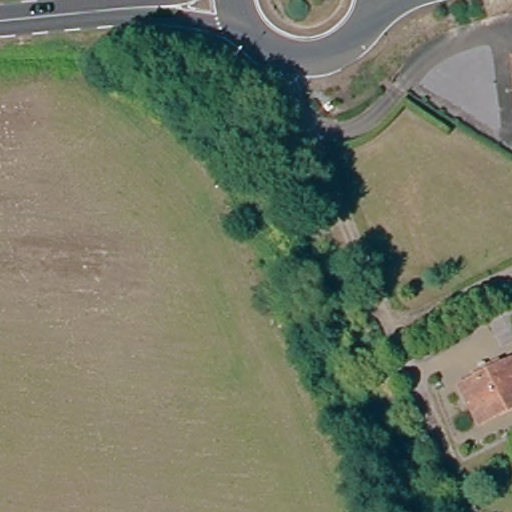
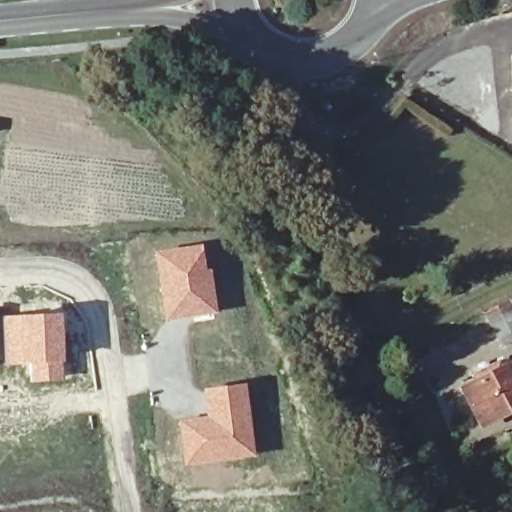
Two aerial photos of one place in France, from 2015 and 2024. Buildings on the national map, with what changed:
new [(162,321),(152,252),(199,245),(204,270),(208,270),(215,314),(162,321)]
new [(58,362),(60,381),(29,382),(26,364),(19,364),(3,364),(1,317),(17,316),(58,314),(61,362),(58,362)]
unchanged [(466,400),(512,372),(512,419),(487,434),(466,400)]
new [(182,468),(176,420),(204,416),(201,389),(243,384),(253,457),(182,468)]

